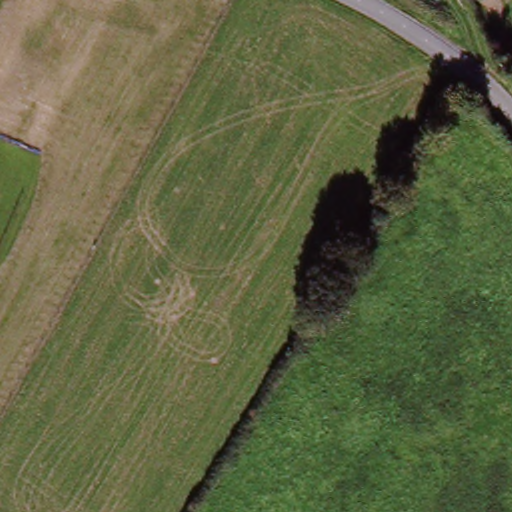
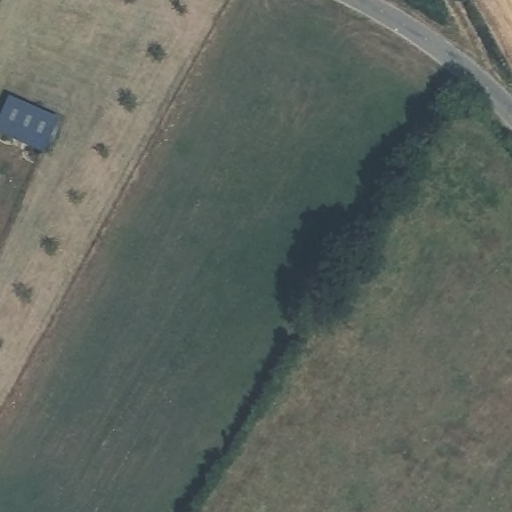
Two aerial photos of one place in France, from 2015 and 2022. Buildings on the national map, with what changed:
new [(12,100),(58,121),(42,153),(0,133),(0,125),(12,100)]

